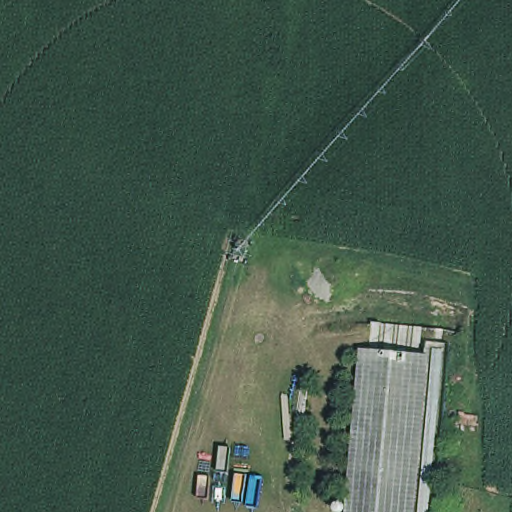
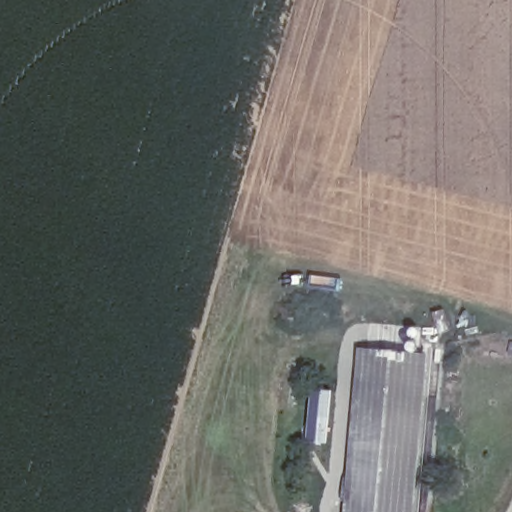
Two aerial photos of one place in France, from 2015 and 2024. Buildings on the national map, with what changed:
unchanged [(426,355),(407,512),(342,512),(359,346),(426,355)]

